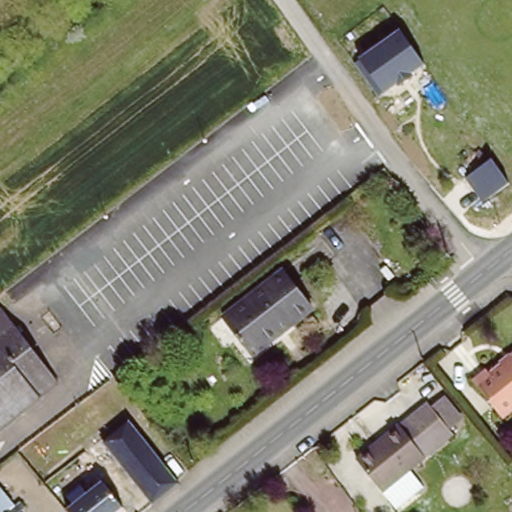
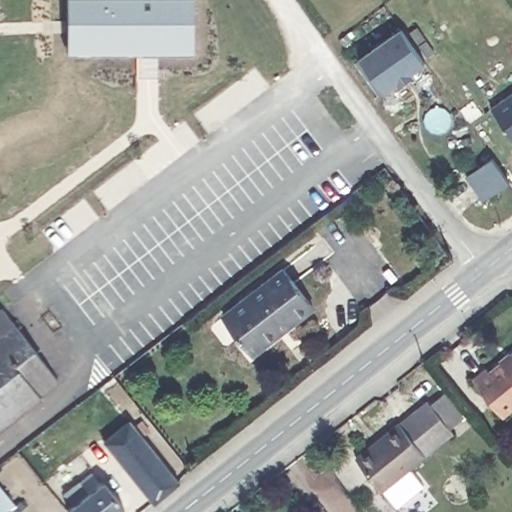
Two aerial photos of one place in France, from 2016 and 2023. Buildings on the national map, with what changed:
new [(66,53),(66,0),(193,0),(192,52),(66,53)]
unchanged [(425,63),(383,92),(377,95),(353,62),(361,56),(401,28),(425,63)]
unchanged [(310,305),(285,325),(257,288),(281,268),(310,305)]
unchanged [(285,325),(250,352),(236,334),(222,315),(228,309),(257,288),(285,325)]
unchanged [(0,306),(1,305),(55,376),(37,390),(38,392),(0,422),(0,306)]
unchanged [(498,416),(470,379),(485,367),(487,371),(512,352),(512,405),(498,416)]
unchanged [(452,430),(408,464),(422,482),(394,504),(354,455),(425,397),(452,430)]
unchanged [(177,481),(152,502),(110,446),(97,456),(90,446),(129,417),(177,481)]
unchanged [(119,512),(68,512),(67,511),(72,506),(65,498),(80,486),(87,493),(100,482),(122,509),(119,512)]
unchanged [(0,508),(0,494),(7,502),(15,512),(0,512),(0,508)]

